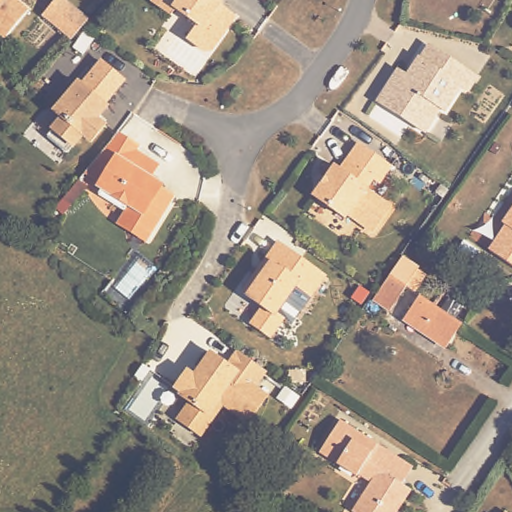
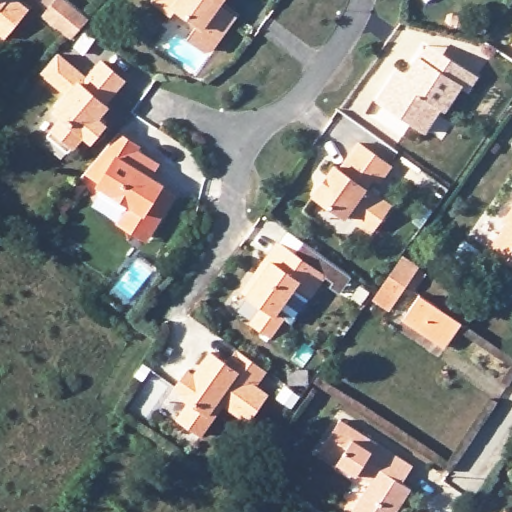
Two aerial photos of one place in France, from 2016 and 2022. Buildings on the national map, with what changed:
unchanged [(9,34),(0,26),(0,0),(28,0),(33,4),(9,34)]
unchanged [(71,0),(93,19),(84,29),(75,39),(47,15),(60,0),(71,0)]
unchanged [(234,17),(211,49),(204,50),(188,39),(198,25),(174,8),(170,14),(152,1),(153,0),(222,0),(218,5),(234,17)]
unchanged [(397,69),(406,75),(418,58),(420,59),(428,45),(449,59),(476,76),(467,90),(460,86),(444,110),(440,108),(424,132),(377,101),(393,76),(397,69)]
unchanged [(83,83),(86,85),(106,62),(128,80),(108,104),(112,106),(101,119),(109,125),(96,142),(88,135),(72,153),(52,136),(67,118),(59,111),(83,83)]
unchanged [(121,219),(124,215),(130,206),(103,189),(106,184),(103,182),(106,178),(90,167),(119,133),(122,129),(142,143),(140,146),(163,160),(155,173),(166,180),(164,184),(178,193),(151,234),(149,237),(121,219)]
unchanged [(334,166),(339,169),(358,144),(390,166),(378,183),(372,178),(365,189),(390,207),(371,232),(346,214),(344,218),(312,195),(334,166)]
unchanged [(84,174),(91,181),(75,200),(67,194),(84,174)]
unchanged [(507,224),(512,217),(512,262),(494,250),(511,225),(507,224)]
unchanged [(325,276),(310,296),(295,285),(275,314),(283,319),(270,337),(250,323),(262,308),(246,297),(247,294),(242,292),(257,270),(266,259),(277,243),(325,276)]
unchanged [(400,258),(417,269),(425,274),(413,291),(406,286),(390,310),(373,299),(389,275),(400,258)]
unchanged [(419,295),(461,324),(446,347),(403,319),(419,295)]
unchanged [(266,371),(255,387),(266,394),(247,422),(222,404),(200,435),(177,419),(189,402),(180,394),(181,393),(174,387),(186,369),(194,375),(210,352),(226,364),(236,350),(266,371)]
unchanged [(355,507),(375,478),(362,469),(360,472),(324,448),(345,415),(417,463),(406,479),(415,486),(399,510),(398,512),(363,512),(355,507)]

